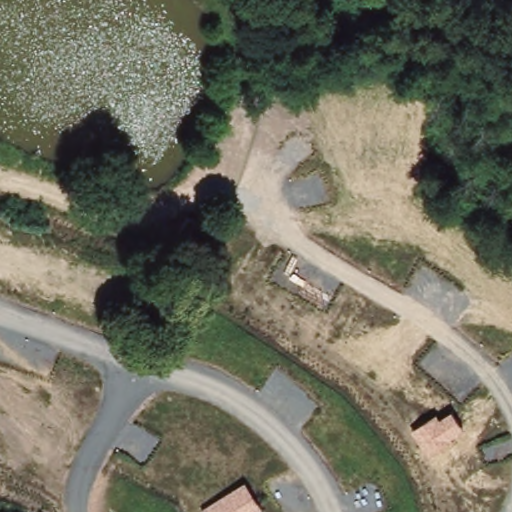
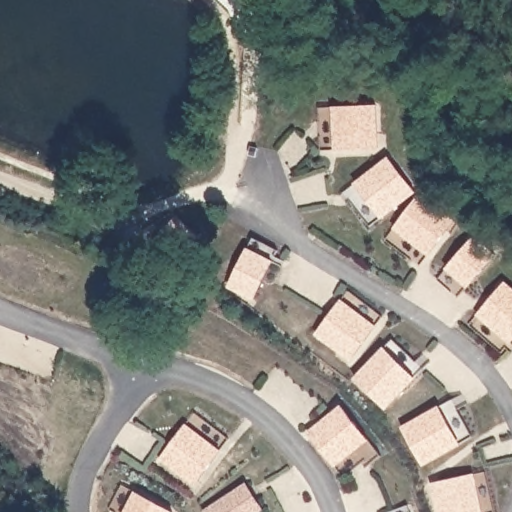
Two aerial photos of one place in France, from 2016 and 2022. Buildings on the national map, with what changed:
new [(335,149),(333,106),(378,105),(381,147),(335,149)]
new [(381,219),(354,184),(392,156),(417,190),(381,219)]
new [(429,254),(395,227),(422,192),(454,219),(429,254)]
unchanged [(211,221),(188,257),(169,244),(193,210),(211,221)]
new [(252,300),(226,287),(247,247),(273,261),(252,300)]
new [(478,314),(508,280),(512,284),(512,339),(510,342),(478,314)]
new [(349,361),(314,334),(341,299),(374,326),(349,361)]
new [(385,408),(353,377),(383,347),(415,378),(385,408)]
new [(335,466),(308,432),(343,405),(369,438),(335,466)]
unchanged [(440,420),(454,412),(465,432),(453,439),(455,443),(429,458),(412,432),(437,416),(440,420)]
new [(192,483),(158,459),(187,423),(220,450),(192,483)]
new [(431,483),(475,473),(481,512),(437,512),(431,483)]
unchanged [(265,510),(262,512),(203,512),(202,511),(246,482),(265,510)]
new [(135,491),(172,512),(124,512),(135,491)]

